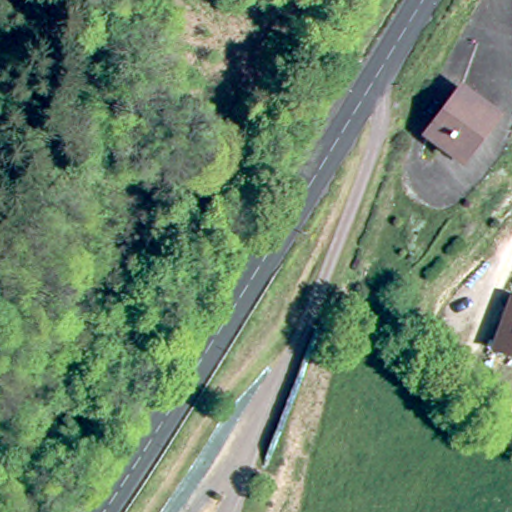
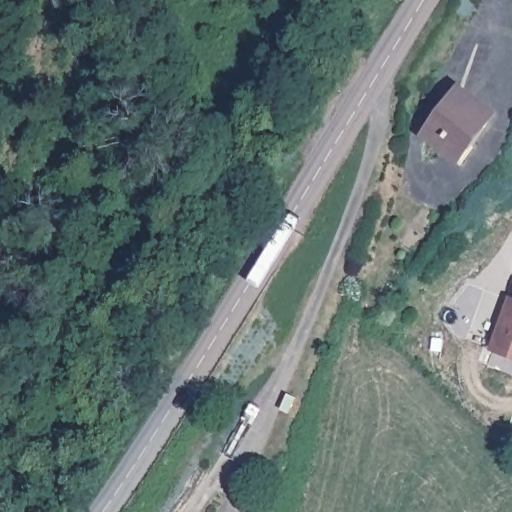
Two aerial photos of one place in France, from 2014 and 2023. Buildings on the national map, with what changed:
unchanged [(470,164),(436,139),(470,95),(501,121),(470,164)]
unchanged [(512,357),(491,350),(510,296),(512,297),(512,357)]

